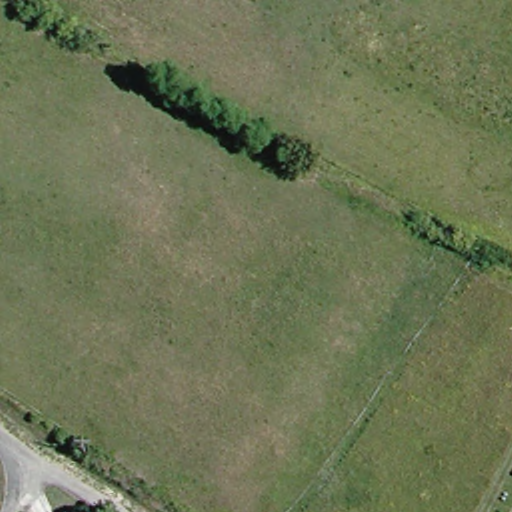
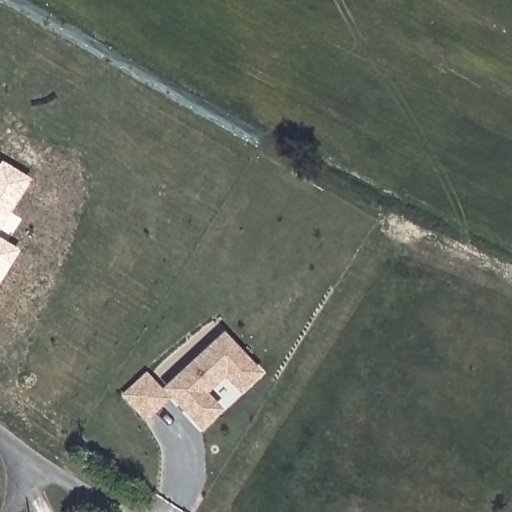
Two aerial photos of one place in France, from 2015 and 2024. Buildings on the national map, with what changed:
new [(31,179),(0,228),(0,163),(2,161),(31,179)]
new [(0,281),(0,239),(19,250),(0,281)]
new [(226,335),(260,372),(241,389),(226,372),(205,392),(220,409),(202,426),(168,389),(226,335)]
new [(147,376),(168,398),(147,417),(127,394),(147,376)]

